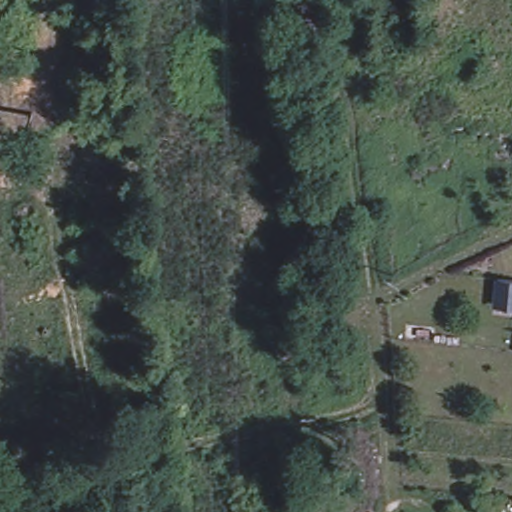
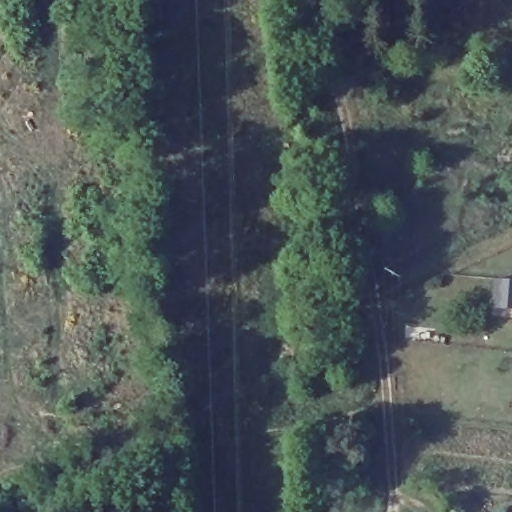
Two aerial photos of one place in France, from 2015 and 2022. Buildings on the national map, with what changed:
unchanged [(512,284),(512,310),(489,308),(491,282),(512,284)]

